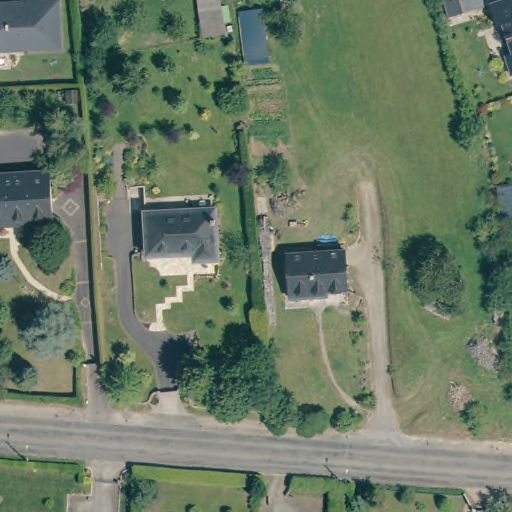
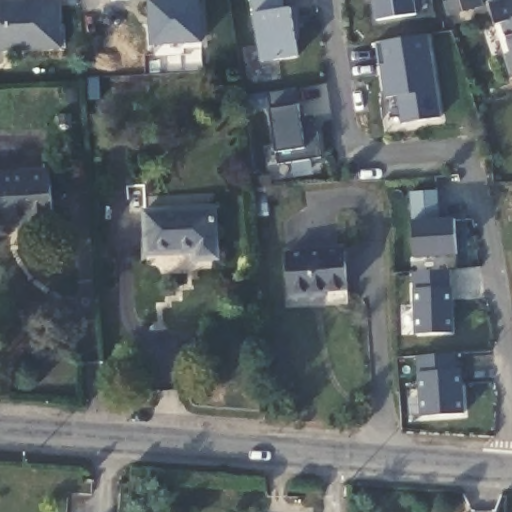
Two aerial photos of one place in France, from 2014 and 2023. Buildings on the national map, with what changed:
unchanged [(22,46),(0,48),(0,1),(23,0),(58,0),(61,47),(22,49),(22,46)]
new [(151,47),(149,0),(200,0),(202,45),(151,47)]
new [(280,0),(281,10),(288,10),(296,58),(259,64),(249,0),(252,0),(280,0)]
new [(374,0),(414,0),(416,15),(376,21),(374,0)]
unchanged [(436,0),(457,0),(458,5),(440,12),(436,0)]
unchanged [(490,51),(497,49),(487,19),(481,22),(474,0),(512,0),(512,67),(497,72),(490,51)]
new [(442,119),(404,125),(400,96),(388,99),(384,75),(383,66),(380,66),(377,43),(429,35),(442,119)]
new [(302,119),(316,116),(316,117),(319,133),(323,159),(279,166),(268,94),(298,89),(302,119)]
unchanged [(17,217),(17,221),(0,223),(0,172),(53,168),(57,214),(17,217)]
new [(436,190),(438,220),(454,219),(456,254),(414,257),(409,192),(436,190)]
unchanged [(194,257),(193,248),(147,252),(143,213),(214,206),(219,255),(194,257)]
unchanged [(319,290),(320,295),(295,296),(292,250),(348,246),(351,287),(319,290)]
new [(448,271),(448,289),(451,289),(453,335),(416,336),(414,273),(448,271)]
new [(454,354),(455,370),(461,370),(464,415),(422,417),(418,356),(454,354)]

